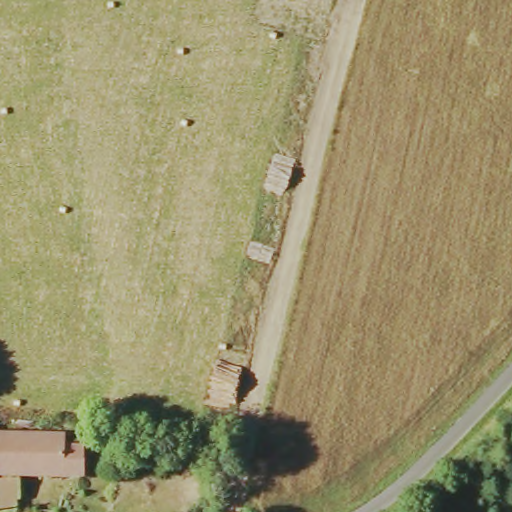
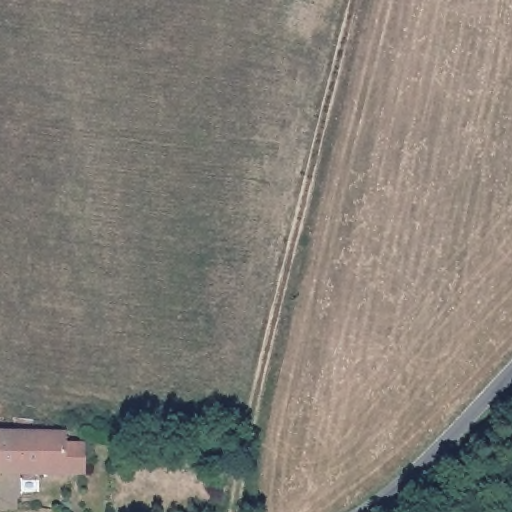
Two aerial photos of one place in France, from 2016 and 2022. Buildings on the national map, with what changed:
unchanged [(63,431),(63,443),(83,443),(82,473),(14,473),(13,512),(0,511),(0,432),(63,431)]

